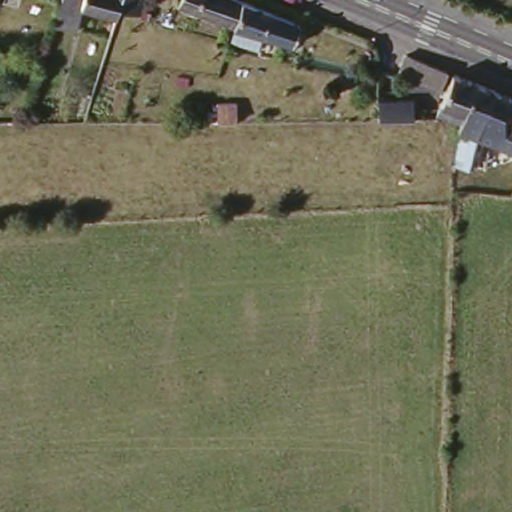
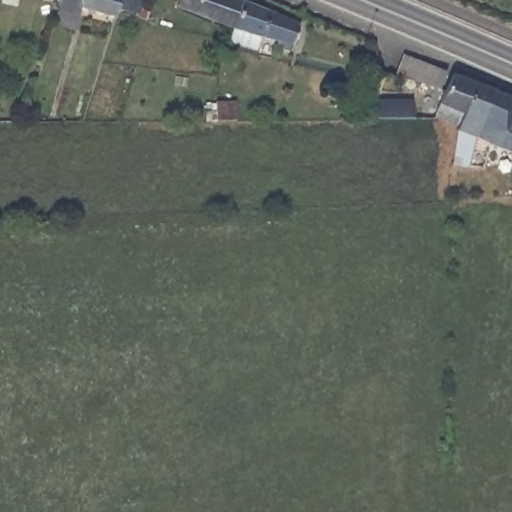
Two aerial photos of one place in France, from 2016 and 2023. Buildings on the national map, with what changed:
unchanged [(59,0),(122,0),(121,4),(115,18),(77,11),(71,32),(50,27),(58,5),(59,0)]
unchanged [(145,0),(141,11),(121,4),(122,0),(145,0)]
unchanged [(187,0),(224,0),(243,5),(235,28),(183,12),(187,0)]
unchanged [(243,5),(297,21),(289,44),(235,28),(243,5)]
unchanged [(441,65),(430,95),(393,85),(406,51),(441,65)]
unchanged [(429,125),(450,68),(508,87),(509,93),(512,94),(512,156),(489,145),(479,169),(457,161),(458,135),(429,125)]
unchanged [(209,108),(228,108),(228,127),(208,127),(209,108)]
unchanged [(376,112),(409,113),(408,130),(375,129),(376,112)]

